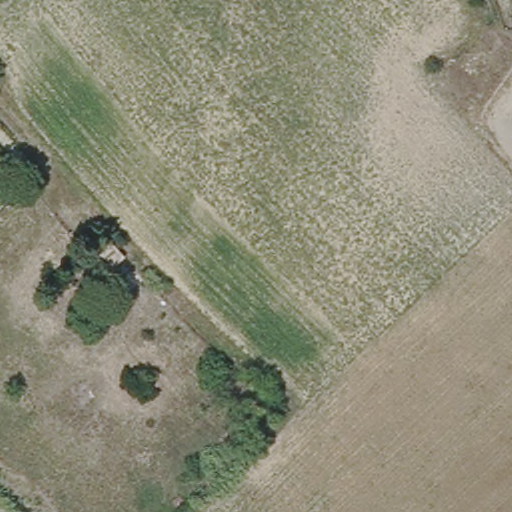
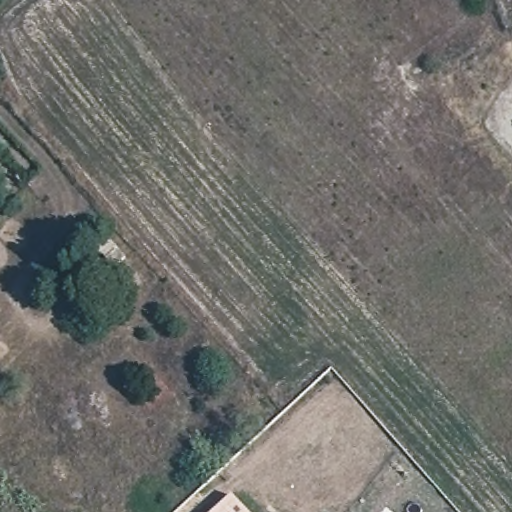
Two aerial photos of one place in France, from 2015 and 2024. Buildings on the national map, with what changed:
unchanged [(124,262),(137,274),(126,285),(114,273),(124,262)]
new [(247,512),(215,512),(233,496),(247,512)]

